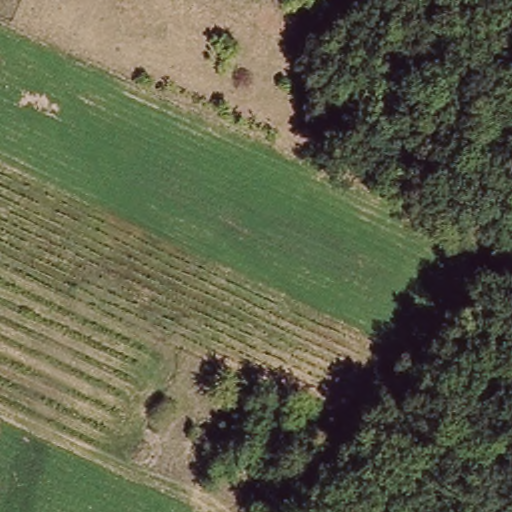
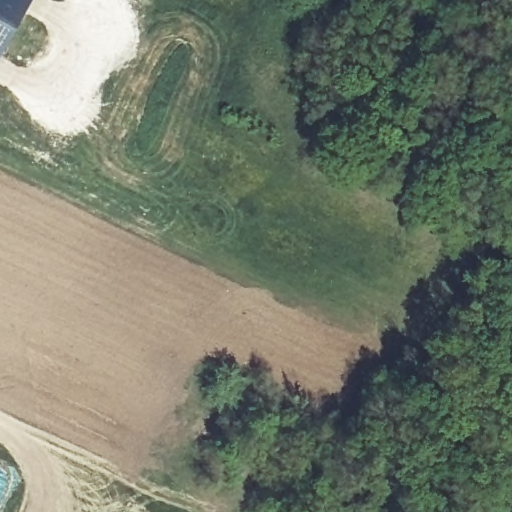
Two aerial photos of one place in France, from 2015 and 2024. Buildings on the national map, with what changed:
new [(31,0),(0,54),(0,0),(31,0)]

